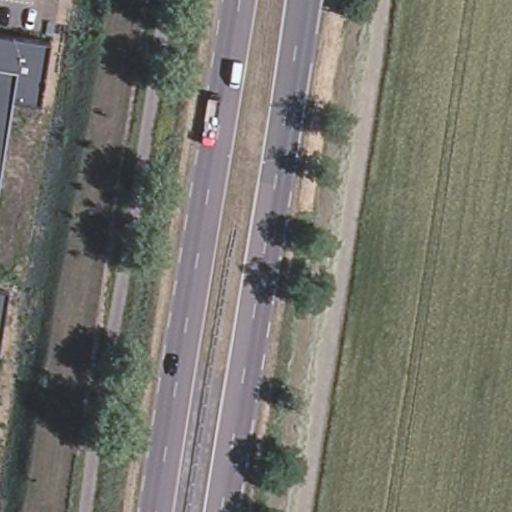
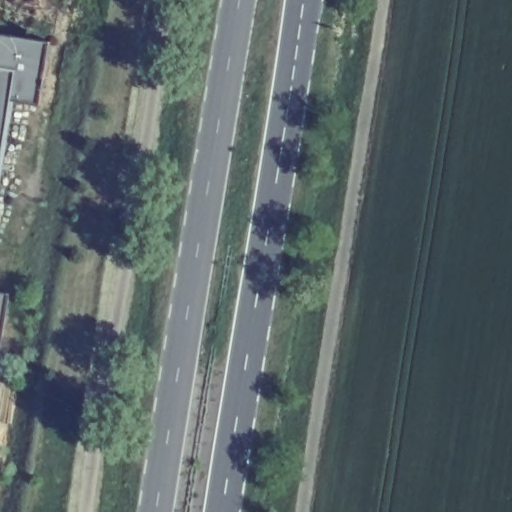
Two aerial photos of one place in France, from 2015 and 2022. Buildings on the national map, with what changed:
unchanged [(51,42),(41,106),(12,102),(0,177),(0,35),(51,42)]
unchanged [(10,295),(1,355),(0,354),(0,294),(10,295)]

